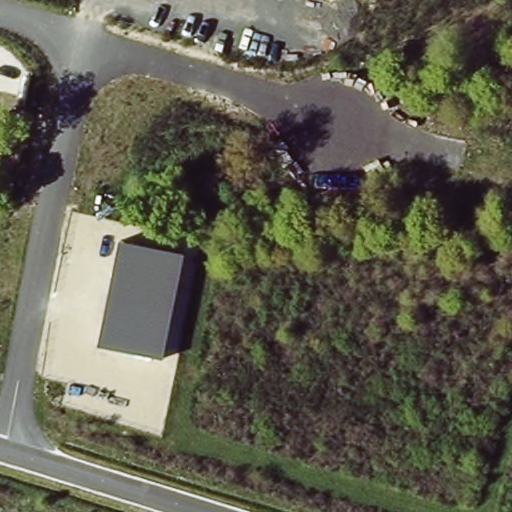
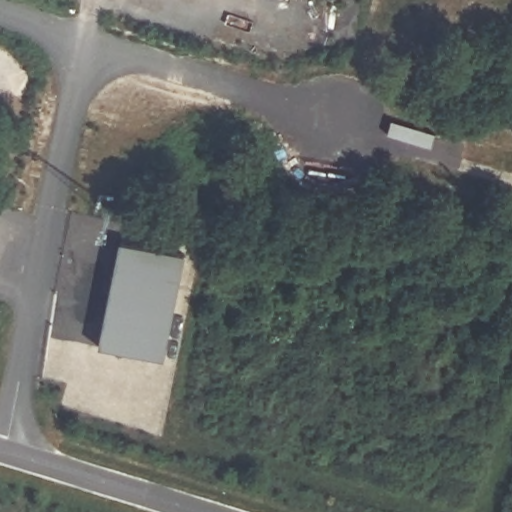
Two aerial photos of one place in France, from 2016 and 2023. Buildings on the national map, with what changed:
unchanged [(119,241),(184,255),(163,359),(99,345),(119,241)]

